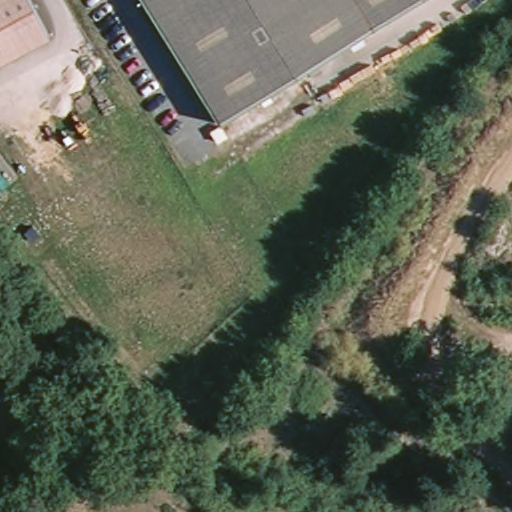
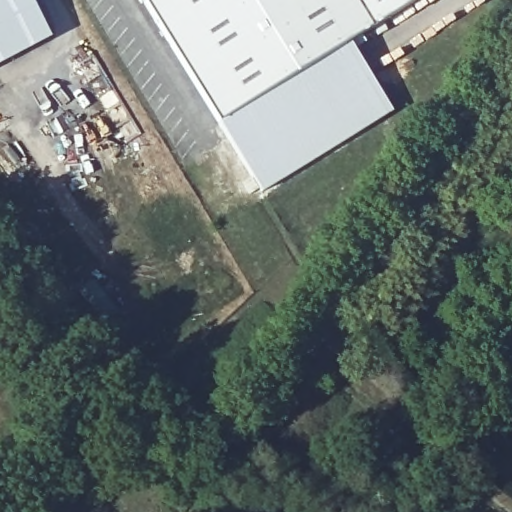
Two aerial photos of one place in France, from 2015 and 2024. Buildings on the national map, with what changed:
unchanged [(53,38),(0,65),(0,0),(32,0),(53,38)]
unchanged [(223,114),(209,122),(134,0),(406,0),(223,114)]
new [(393,113),(262,194),(214,119),(223,114),(346,37),(393,113)]

